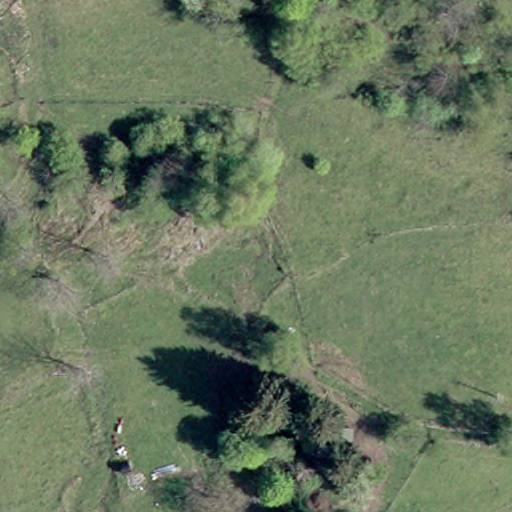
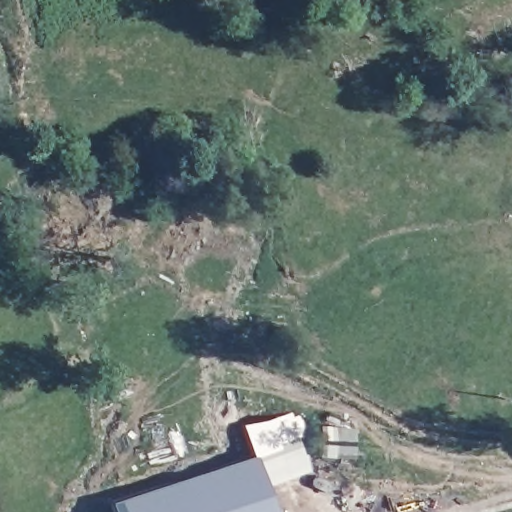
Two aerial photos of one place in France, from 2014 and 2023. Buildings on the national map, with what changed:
new [(258,456),(275,512),(113,512),(110,504),(258,456)]

